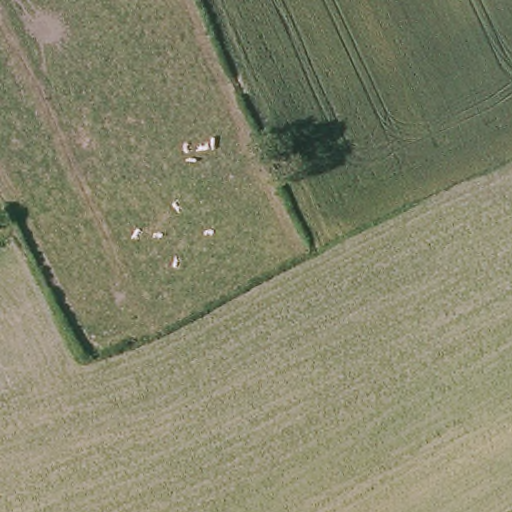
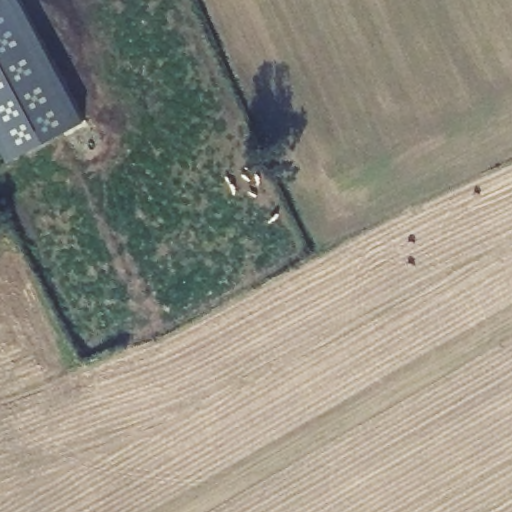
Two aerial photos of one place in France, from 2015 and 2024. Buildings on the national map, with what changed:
new [(0,139),(0,0),(22,0),(89,125),(14,165),(0,139)]

